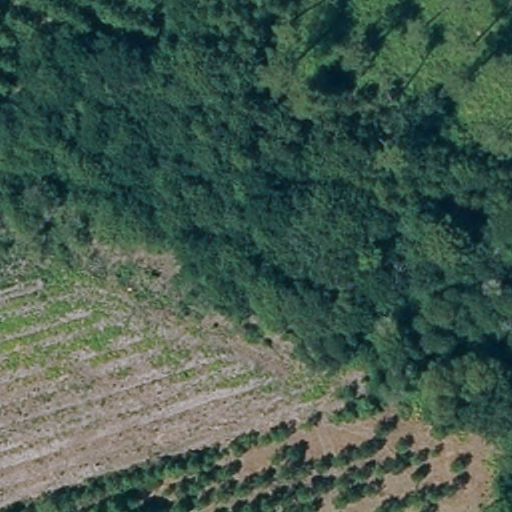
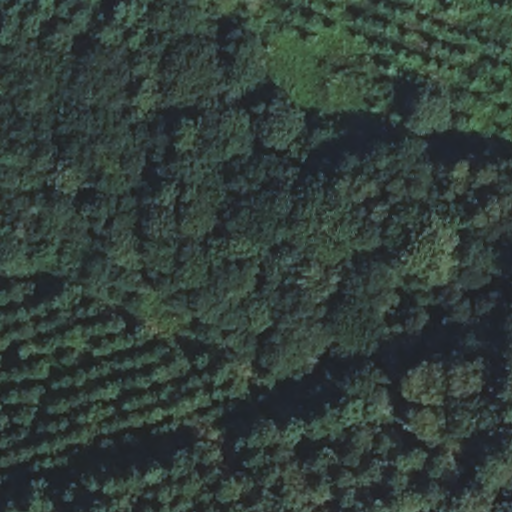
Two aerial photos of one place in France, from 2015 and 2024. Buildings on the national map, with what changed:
[]

